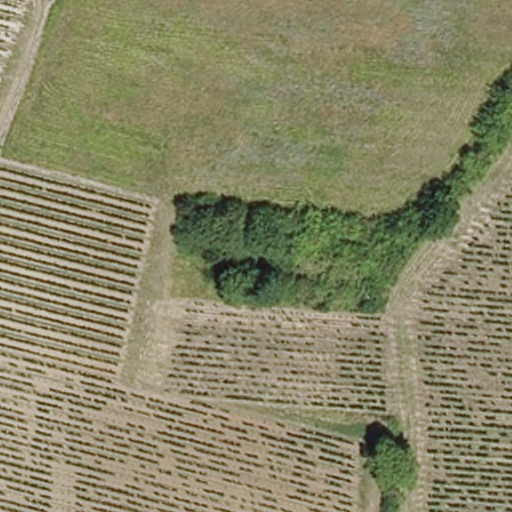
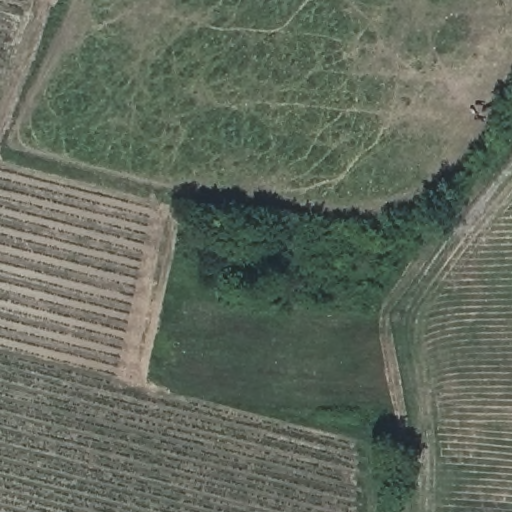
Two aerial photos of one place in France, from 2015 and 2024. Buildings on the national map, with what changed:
[]

